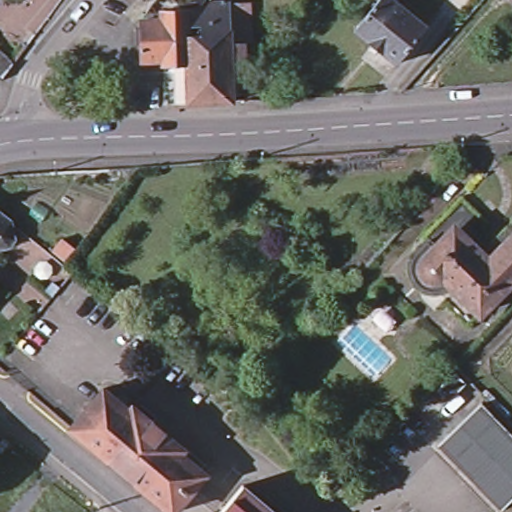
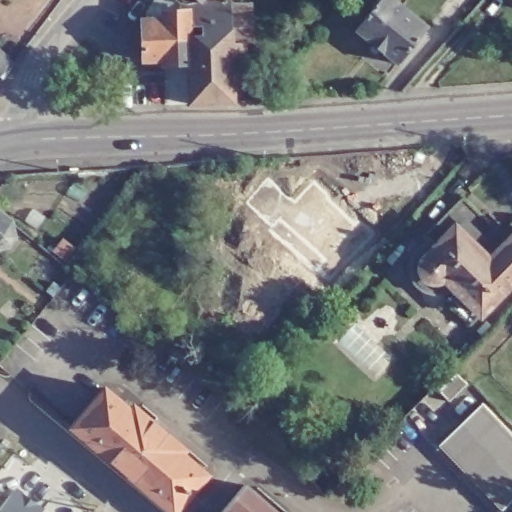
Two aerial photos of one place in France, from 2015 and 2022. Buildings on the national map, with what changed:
unchanged [(240,75),(228,75),(229,102),(185,104),(184,62),(160,63),(159,59),(137,60),(137,20),(152,20),(152,12),(175,12),(175,5),(170,0),(195,0),(197,2),(225,1),(247,1),(249,42),(242,42),(242,71),(240,71),(240,75)]
unchanged [(393,57),(352,23),(370,0),(397,0),(422,21),(393,57)]
unchanged [(511,0),(512,0),(512,1),(511,0)]
unchanged [(0,37),(0,34),(2,36),(0,37)]
unchanged [(0,42),(15,57),(3,72),(0,68),(0,42)]
unchanged [(13,243),(0,245),(0,210),(15,222),(17,237),(13,243)]
unchanged [(437,251),(466,222),(500,256),(512,244),(512,281),(478,313),(450,285),(443,290),(435,291),(427,290),(419,286),(414,278),(412,271),(412,262),(416,255),(429,242),(437,251)]
unchanged [(53,297),(47,292),(53,283),(60,288),(53,297)]
unchanged [(467,378),(450,396),(438,384),(455,367),(467,378)]
unchanged [(72,425),(105,386),(130,407),(132,403),(184,447),(182,451),(208,473),(177,512),(72,425)]
unchanged [(512,428),(512,498),(502,507),(439,442),(484,398),(512,428)]
unchanged [(243,483),(277,512),(218,512),(243,483)]

